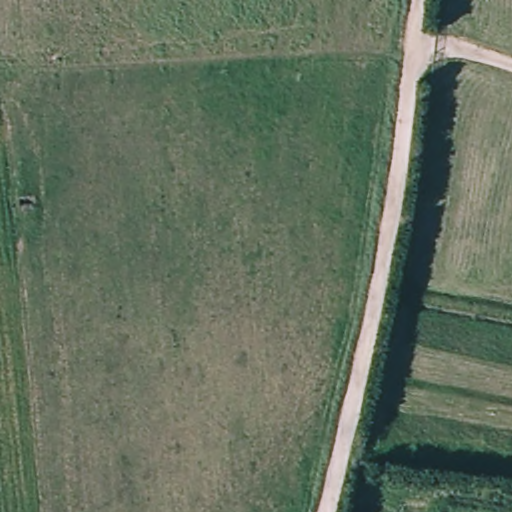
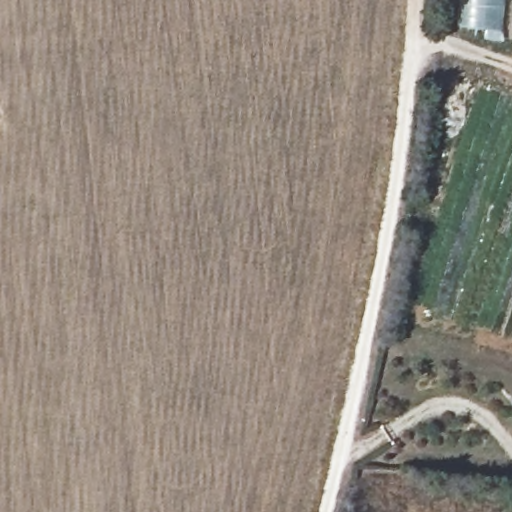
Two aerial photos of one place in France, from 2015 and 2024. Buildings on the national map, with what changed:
new [(458,24),(460,0),(512,0),(512,29),(458,24)]

